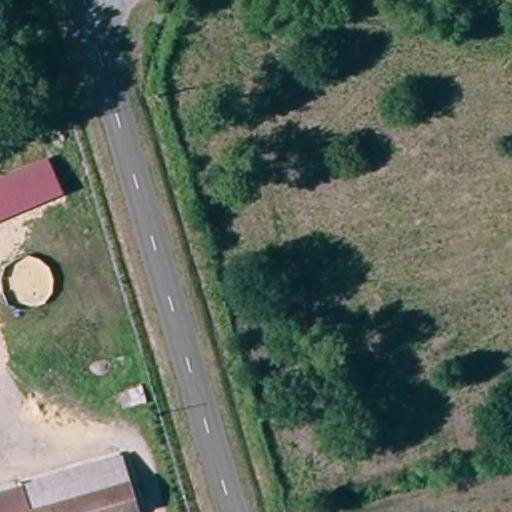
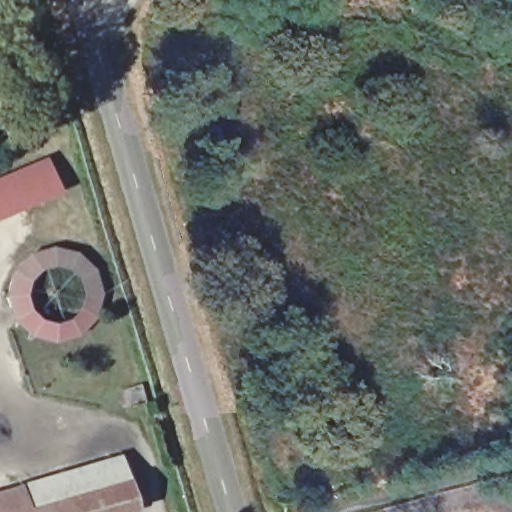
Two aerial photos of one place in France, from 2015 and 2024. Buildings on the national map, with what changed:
unchanged [(0,218),(0,175),(47,155),(62,192),(0,218)]
new [(6,319),(6,293),(13,269),(28,252),(53,245),(78,251),(95,269),(101,292),(96,317),(78,335),(53,341),(30,334),(13,318),(6,319)]
unchanged [(131,487),(37,512),(31,512),(26,495),(127,469),(131,487)]
unchanged [(131,487),(137,512),(37,512),(131,487)]
unchanged [(26,495),(31,512),(0,512),(0,495),(24,488),(26,495)]

